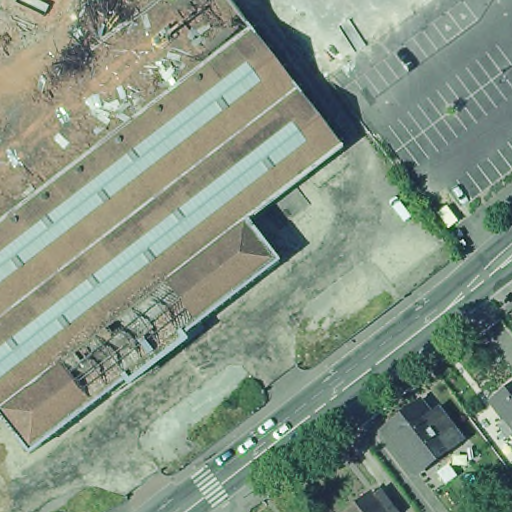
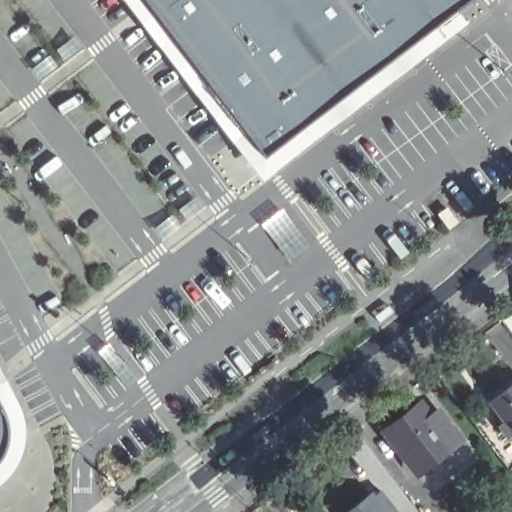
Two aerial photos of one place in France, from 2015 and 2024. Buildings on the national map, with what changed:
demolished [(229,0),(233,5),(344,149),(250,222),(0,415),(0,36),(47,0),(229,0)]
new [(143,0),(471,0),(265,158),(143,0)]
demolished [(229,0),(239,0),(233,5),(229,0)]
demolished [(267,0),(430,0),(327,77),(267,0)]
demolished [(280,262),(183,337),(186,341),(131,383),(127,379),(31,454),(0,415),(250,222),(280,262)]
new [(24,426),(23,447),(12,470),(0,484),(0,370),(17,402),(24,426)]
unchanged [(496,402),(512,389),(512,423),(496,402)]
unchanged [(431,417),(440,411),(461,439),(417,472),(386,432),(421,405),(431,417)]
unchanged [(510,429),(512,428),(512,433),(510,429)]
unchanged [(371,494),(373,497),(381,491),(397,512),(348,512),(371,494)]

